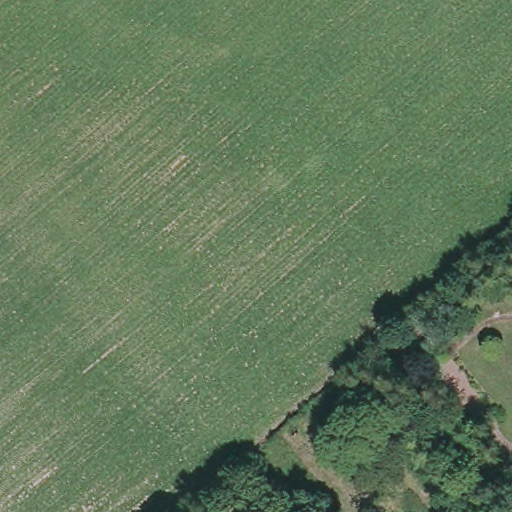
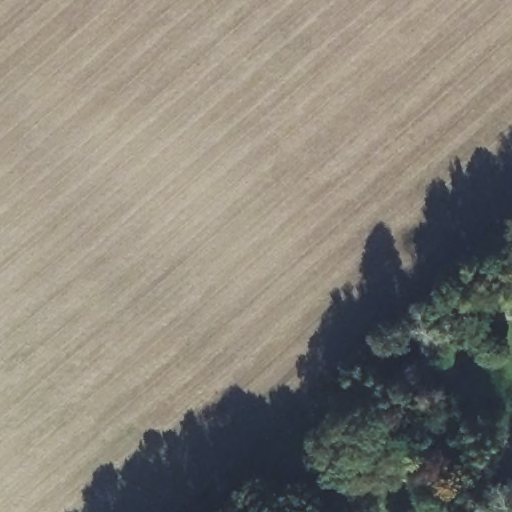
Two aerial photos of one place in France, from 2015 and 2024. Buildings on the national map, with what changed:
[]

